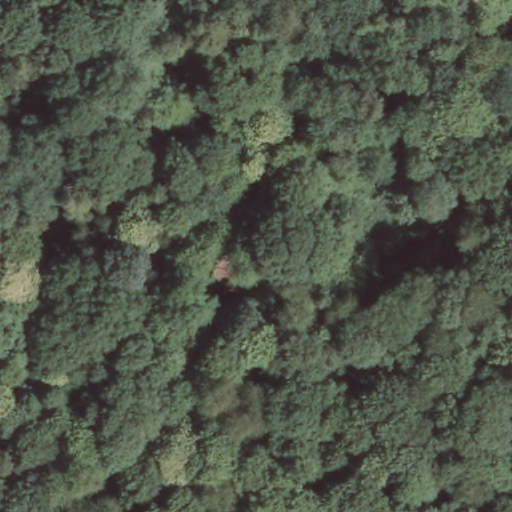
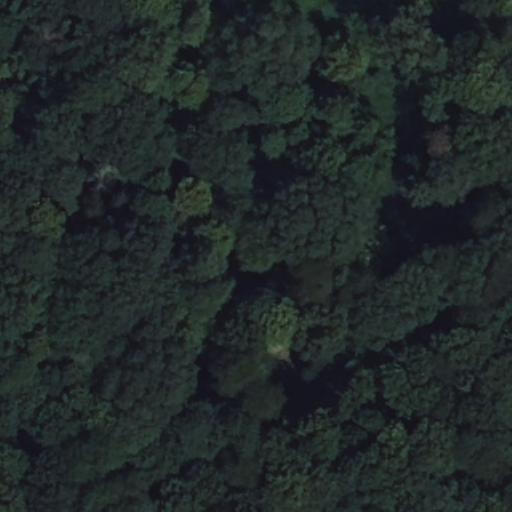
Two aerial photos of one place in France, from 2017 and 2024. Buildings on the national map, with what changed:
unchanged [(211,285),(213,261),(251,264),(249,288),(211,285)]

